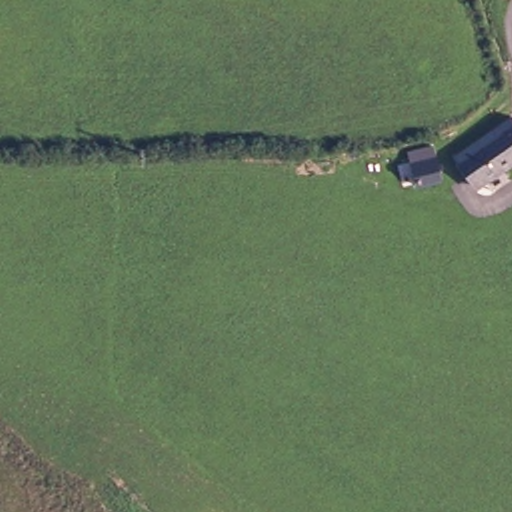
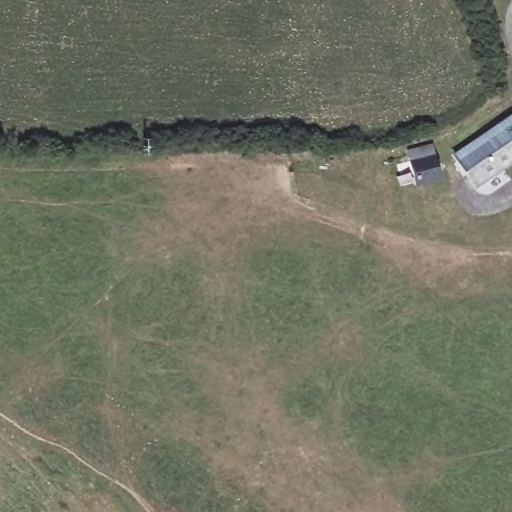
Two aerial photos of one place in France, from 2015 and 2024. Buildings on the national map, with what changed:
unchanged [(481,181),(469,165),(462,152),(512,116),(512,161),(481,181)]
unchanged [(416,156),(445,152),(446,176),(417,181),(416,156)]

